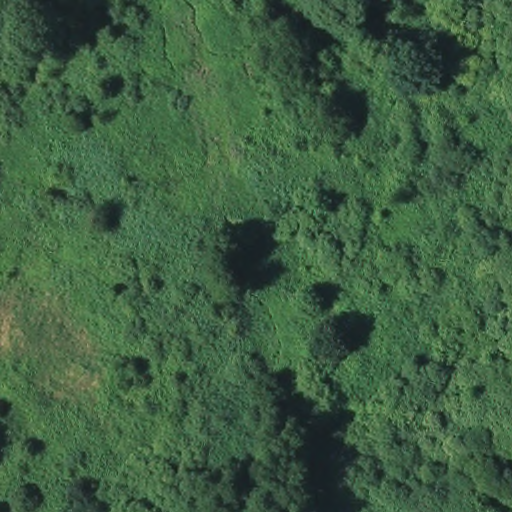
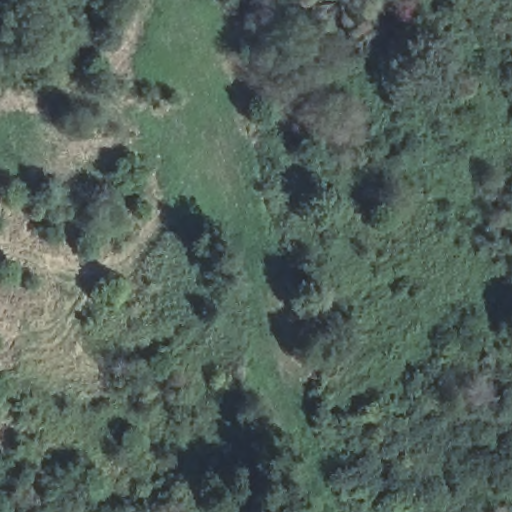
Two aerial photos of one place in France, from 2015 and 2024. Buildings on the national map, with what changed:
[]

